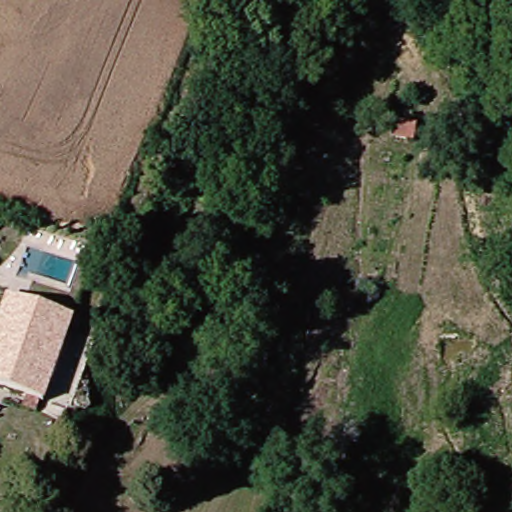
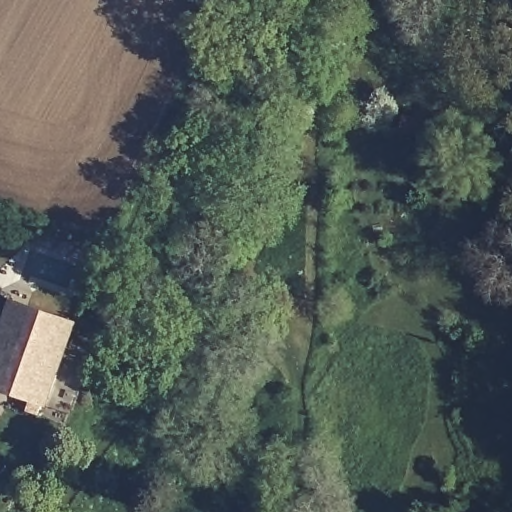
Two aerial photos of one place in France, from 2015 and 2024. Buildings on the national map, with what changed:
unchanged [(36,415),(33,422),(20,418),(22,410),(0,400),(0,323),(7,303),(72,330),(40,416),(36,415)]

